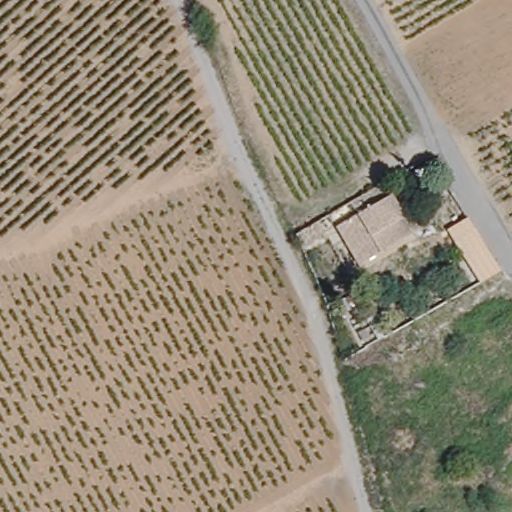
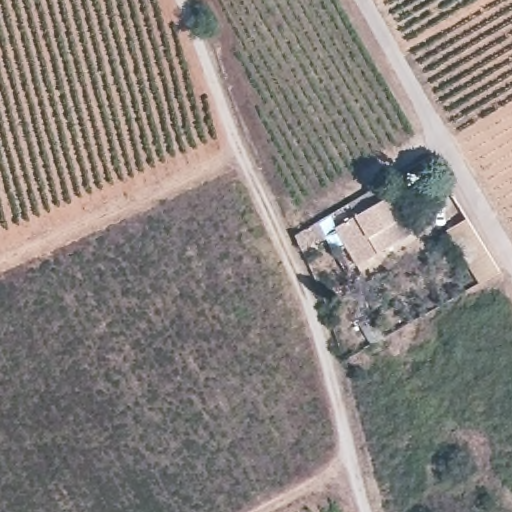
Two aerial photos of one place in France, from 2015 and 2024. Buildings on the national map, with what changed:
unchanged [(338,226),(304,247),(296,232),(343,206),(348,217),(358,212),(356,208),(393,188),(407,214),(413,231),(382,250),(358,264),(338,226)]
unchanged [(449,231),(469,218),(503,270),(482,283),(449,231)]

